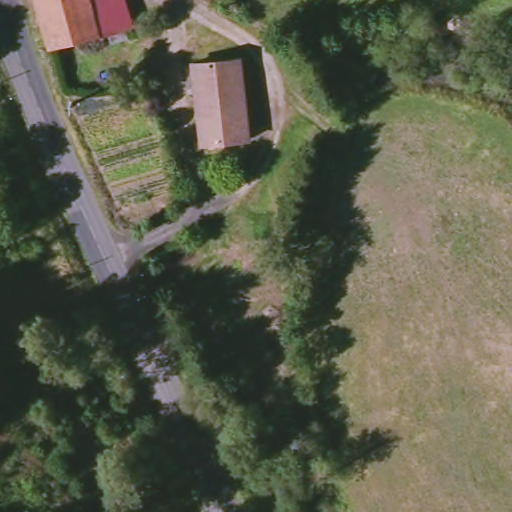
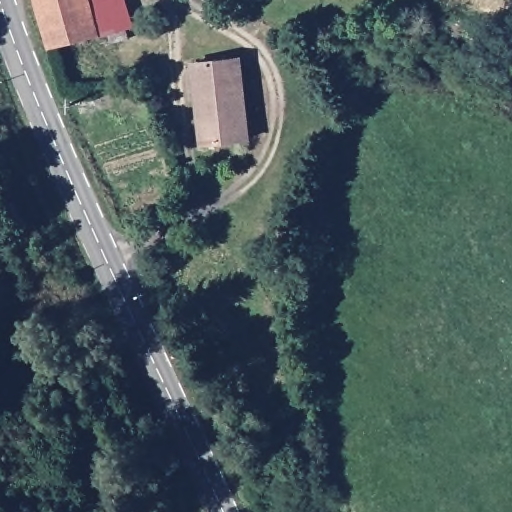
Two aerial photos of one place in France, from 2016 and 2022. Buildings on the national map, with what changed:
unchanged [(34,0),(125,0),(132,28),(48,51),(34,0)]
unchanged [(245,60),(251,141),(203,144),(197,64),(245,60)]

